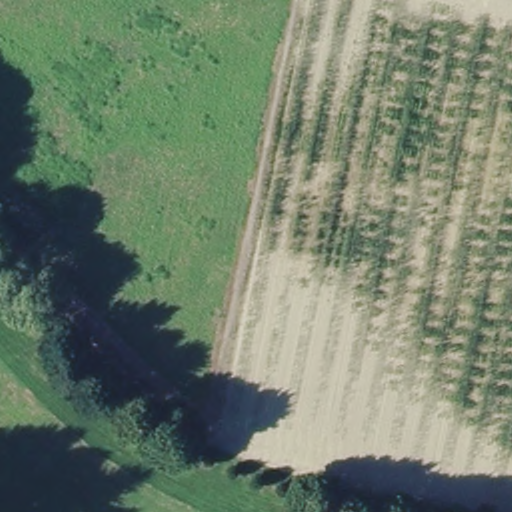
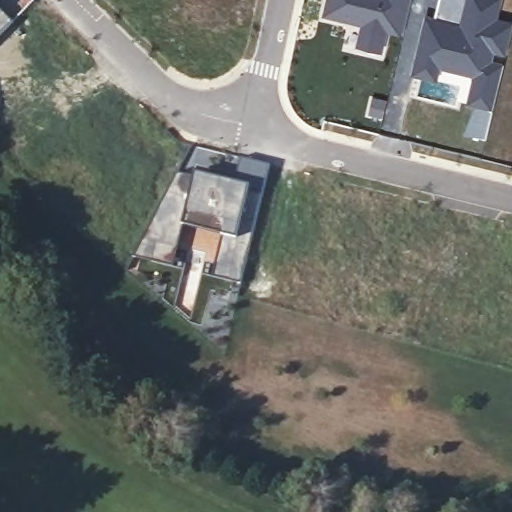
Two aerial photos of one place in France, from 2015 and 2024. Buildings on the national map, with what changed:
new [(16,20),(0,35),(0,0),(2,3),(5,0),(35,0),(16,20)]
new [(327,0),(413,0),(404,35),(390,33),(385,50),(357,44),(362,25),(323,15),(327,0)]
new [(431,16),(434,17),(439,0),(504,0),(500,16),(512,19),(512,36),(486,138),(466,132),(476,105),(467,102),(473,76),(442,68),(439,79),(413,72),(431,16)]
new [(182,226),(182,225),(179,224),(192,174),(181,171),(194,144),(270,163),(240,283),(212,276),(215,263),(199,258),(200,253),(190,250),(195,229),(182,226)]
new [(149,225),(178,170),(181,171),(192,174),(179,224),(182,225),(182,226),(174,266),(135,256),(149,225)]

